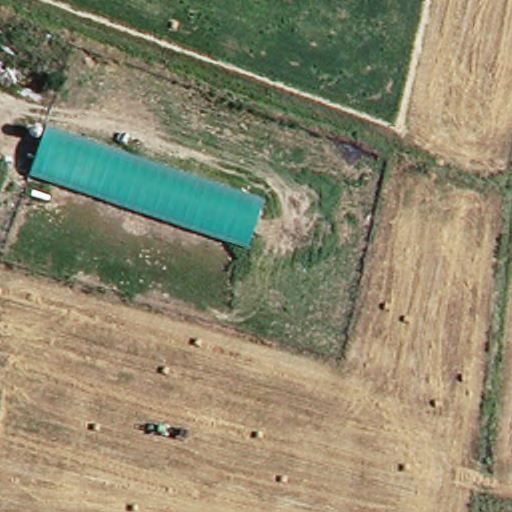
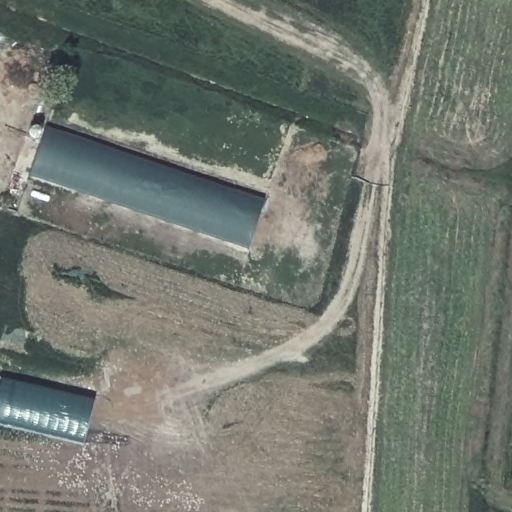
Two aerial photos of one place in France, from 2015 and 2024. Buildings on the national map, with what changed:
unchanged [(44,126),(263,202),(249,247),(29,170),(44,126)]
new [(0,423),(0,382),(93,403),(84,443),(0,423)]

